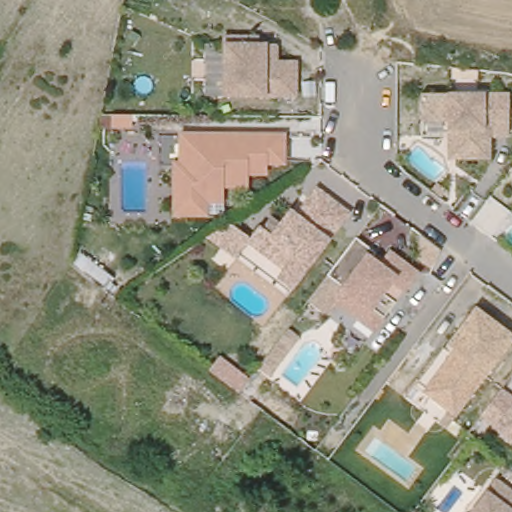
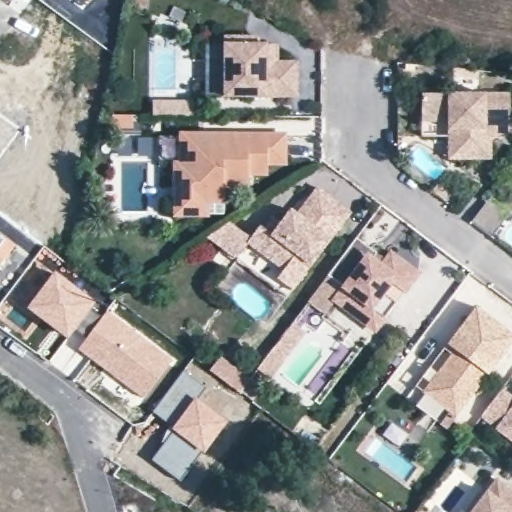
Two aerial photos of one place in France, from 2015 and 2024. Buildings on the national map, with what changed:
new [(70,0),(73,0),(72,1),(70,0)]
unchanged [(223,101),(224,41),(252,41),(252,48),(277,48),(277,66),(297,66),(296,101),(223,101)]
unchanged [(496,98),(509,98),(509,141),(490,141),(490,163),(455,163),(456,152),(456,133),(448,133),(448,125),(421,125),(421,97),(496,98)]
new [(194,118),(152,118),(153,100),(194,100),(194,118)]
unchanged [(172,139),(172,136),(281,135),(285,161),(256,161),(256,172),(237,172),(237,185),(213,185),(212,217),(173,218),(172,139)]
unchanged [(435,183),(446,191),(440,199),(437,197),(430,191),(435,183)]
unchanged [(245,238),(255,226),(259,229),(267,217),(276,223),(280,219),(285,223),(312,188),(345,212),(287,290),(272,278),(278,270),(242,242),(245,238)]
unchanged [(491,197),(511,212),(491,238),(491,239),(471,223),(491,197)]
unchanged [(230,257),(202,237),(224,222),(245,238),(242,242),(278,270),(272,278),(287,290),(281,296),(230,257)]
new [(0,265),(0,233),(16,245),(0,265)]
unchanged [(356,318),(338,305),(333,301),(323,314),(307,302),(325,278),(355,238),(356,238),(375,253),(371,259),(372,260),(380,266),(390,253),(417,274),(383,318),(373,331),(356,318)]
new [(55,271),(95,303),(67,339),(26,309),(55,271)]
unchanged [(512,340),(454,417),(421,392),(453,350),(446,344),(475,306),(512,335),(512,340)]
new [(102,317),(85,340),(75,330),(90,309),(102,317)]
new [(107,310),(173,359),(143,399),(77,351),(107,310)]
new [(292,322),(306,333),(271,380),(257,370),(292,322)]
unchanged [(215,373),(225,360),(250,379),(240,392),(215,373)]
new [(197,397),(172,427),(152,412),(185,371),(206,388),(198,398),(197,397)]
unchanged [(512,402),(512,449),(482,427),(479,424),(501,394),(505,397),(512,402)]
new [(172,427),(197,397),(230,421),(203,455),(200,452),(170,430),(172,427)]
new [(173,432),(200,452),(202,454),(180,481),(151,460),(173,432)]
unchanged [(492,480),(512,495),(512,512),(468,512),(492,480)]

